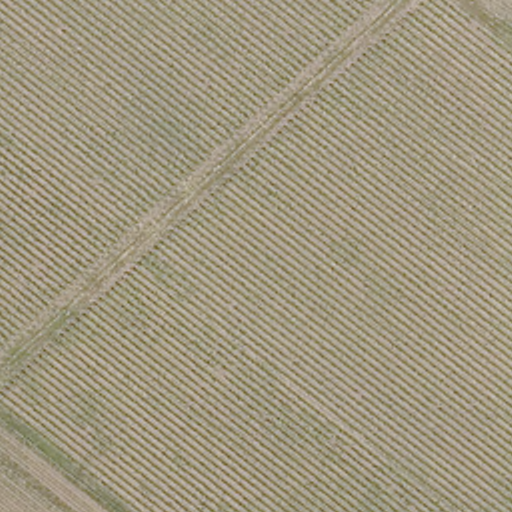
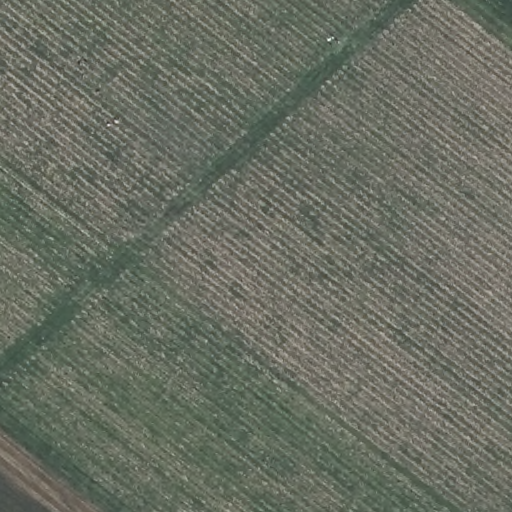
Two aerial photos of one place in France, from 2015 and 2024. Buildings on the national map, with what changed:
[]

